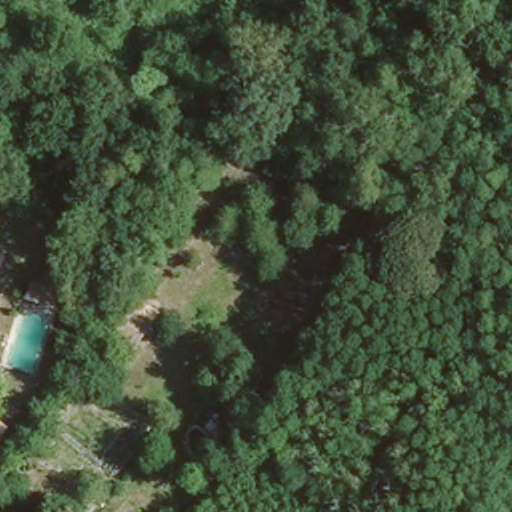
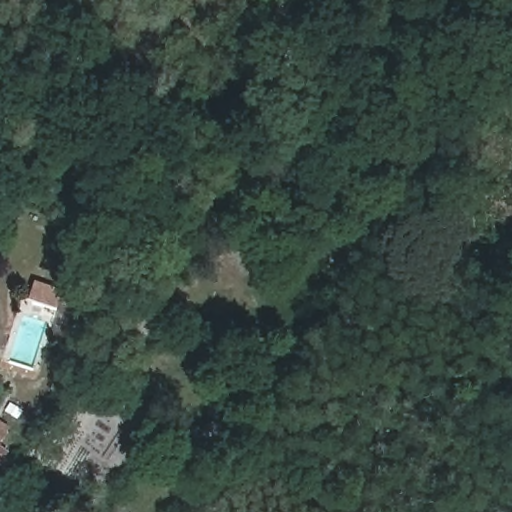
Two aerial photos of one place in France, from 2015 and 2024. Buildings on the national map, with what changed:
unchanged [(59,287),(53,304),(25,298),(31,280),(59,287)]

